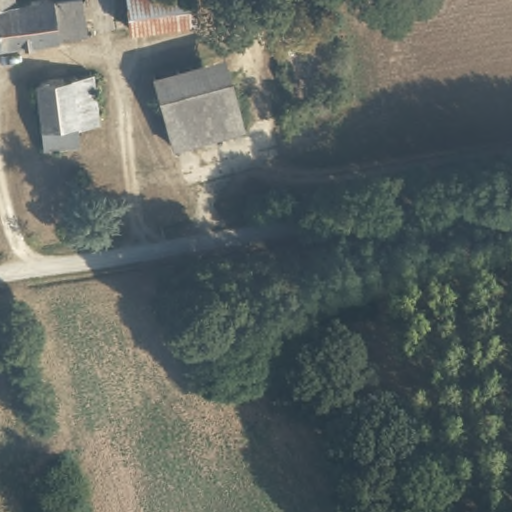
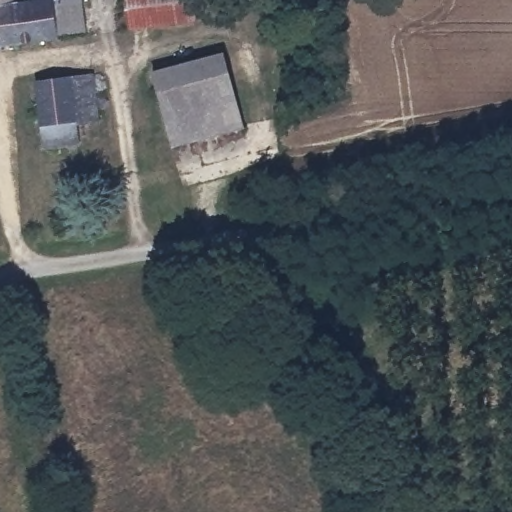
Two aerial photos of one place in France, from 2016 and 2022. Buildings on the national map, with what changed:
unchanged [(80,31),(0,41),(0,0),(77,0),(80,31)]
unchanged [(126,25),(123,0),(190,0),(192,16),(126,25)]
unchanged [(283,30),(281,11),(313,7),(315,25),(283,30)]
unchanged [(156,67),(227,57),(234,97),(163,110),(156,67)]
unchanged [(40,76),(98,71),(102,116),(83,118),(84,141),(71,142),(46,145),(40,76)]
unchanged [(239,131),(170,145),(163,110),(234,97),(239,131)]

